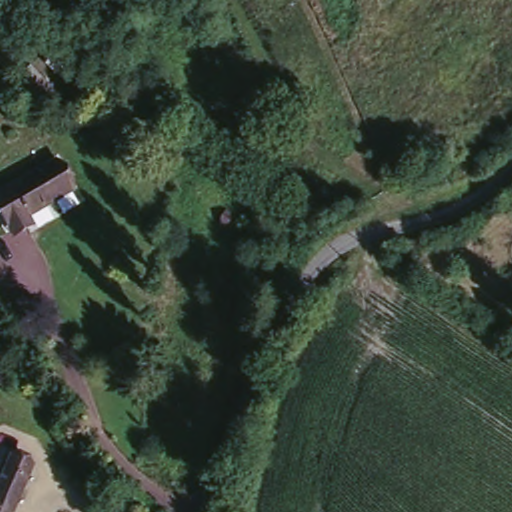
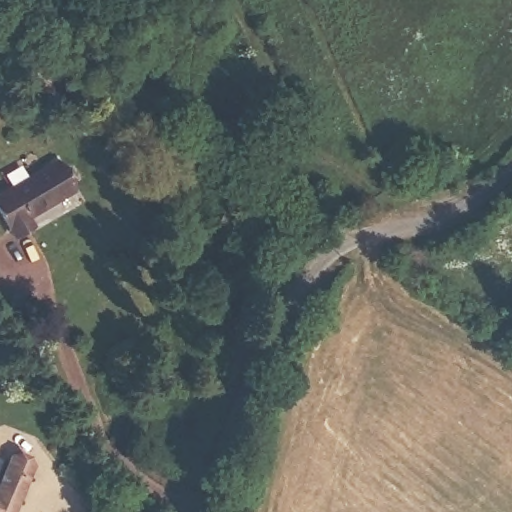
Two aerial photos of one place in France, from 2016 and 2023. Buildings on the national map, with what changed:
unchanged [(71,186),(14,229),(0,210),(0,202),(54,164),(71,186)]
unchanged [(32,467),(11,512),(0,512),(0,483),(12,458),(32,467)]

